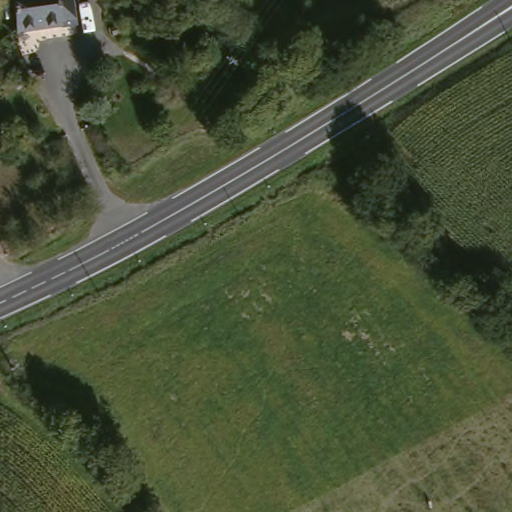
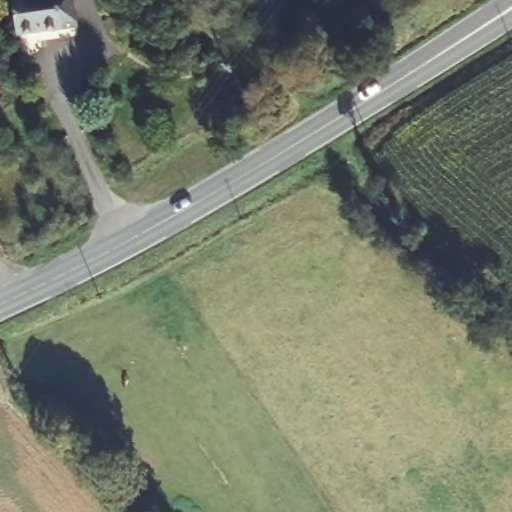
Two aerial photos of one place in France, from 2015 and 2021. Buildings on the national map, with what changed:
unchanged [(17,30),(13,0),(74,0),(77,26),(17,30)]

